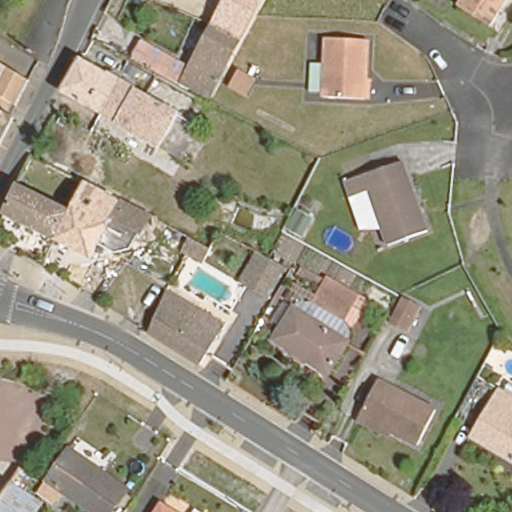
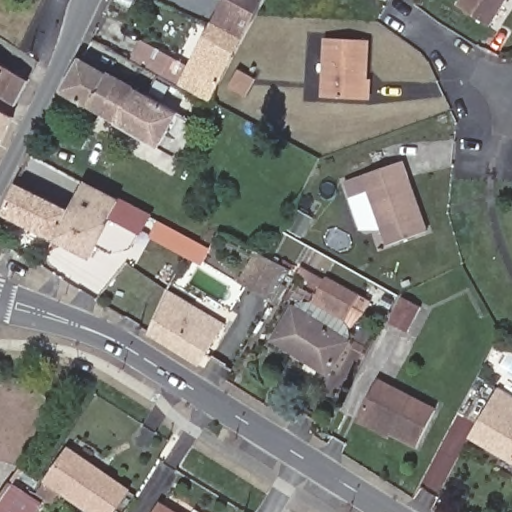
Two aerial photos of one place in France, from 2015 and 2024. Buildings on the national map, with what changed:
unchanged [(220,0),(258,0),(251,13),(236,39),(217,28),(207,23),(220,0)]
unchanged [(458,14),(468,0),(512,0),(490,35),(458,14)]
unchanged [(217,28),(236,39),(204,98),(175,83),(176,81),(128,54),(136,39),(184,66),(207,23),(217,28)]
unchanged [(368,45),(366,83),(370,83),(369,104),(322,101),(325,43),(368,45)]
unchanged [(118,78),(143,92),(155,71),(175,83),(204,98),(210,101),(179,160),(56,92),(77,56),(118,78)]
unchanged [(0,97),(0,65),(25,80),(14,106),(0,97)]
unchanged [(240,75),(255,84),(246,101),(230,93),(240,75)]
unchanged [(0,142),(0,110),(13,117),(0,142)]
unchanged [(426,234),(386,249),(368,195),(355,201),(347,179),(400,159),(408,181),(426,234)]
unchanged [(65,207),(80,180),(131,206),(145,213),(125,248),(108,252),(94,245),(87,256),(49,239),(65,207)]
unchanged [(0,210),(13,182),(65,207),(49,239),(0,215),(0,210)]
unchanged [(201,193),(190,224),(174,217),(185,187),(201,193)]
new [(180,244),(178,248),(167,243),(174,230),(189,238),(210,249),(202,264),(181,252),(185,245),(180,244)]
unchanged [(253,254),(283,272),(265,303),(235,285),(253,254)]
unchanged [(165,294),(168,287),(225,321),(200,362),(150,331),(165,294)]
unchanged [(345,325),(316,310),(324,295),(327,288),(355,304),(352,310),(345,325)]
unchanged [(403,344),(387,336),(405,301),(420,310),(403,344)]
unchanged [(273,348),(293,316),(300,304),(356,338),(349,351),(328,383),(273,348)]
unchanged [(437,408),(418,443),(361,414),(380,378),(437,408)]
unchanged [(468,437),(488,402),(496,388),(512,397),(512,463),(468,437)]
unchanged [(49,486),(70,454),(128,494),(115,512),(88,512),(49,486)]
unchanged [(30,501),(45,512),(0,512),(0,501),(10,486),(30,501)]

